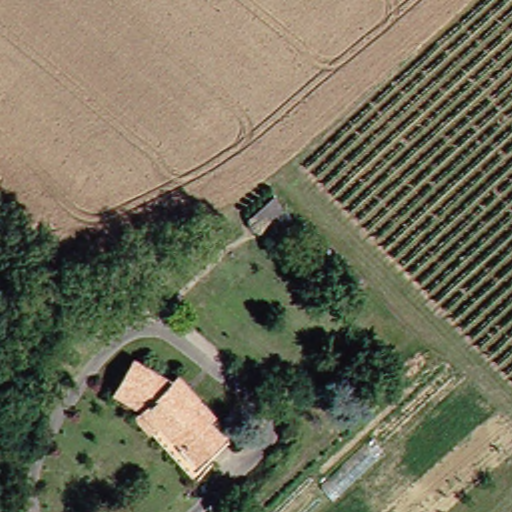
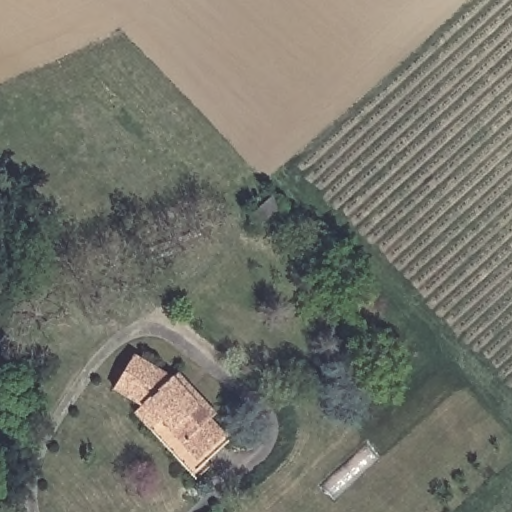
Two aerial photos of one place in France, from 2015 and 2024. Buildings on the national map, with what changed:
unchanged [(273,195),(282,205),(258,226),(250,216),(273,195)]
unchanged [(203,418),(218,436),(181,470),(128,414),(135,405),(108,390),(128,357),(166,379),(171,374),(196,400),(208,414),(203,418)]

